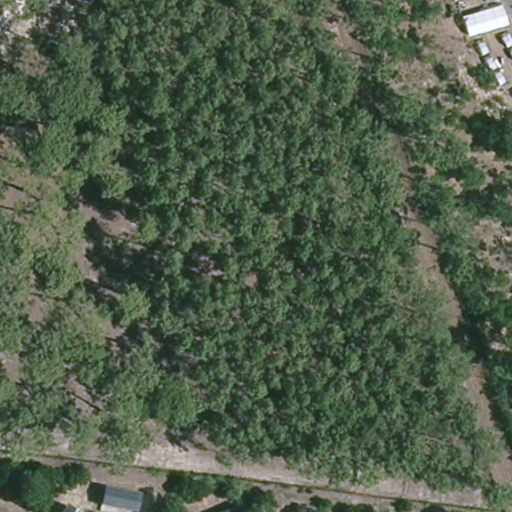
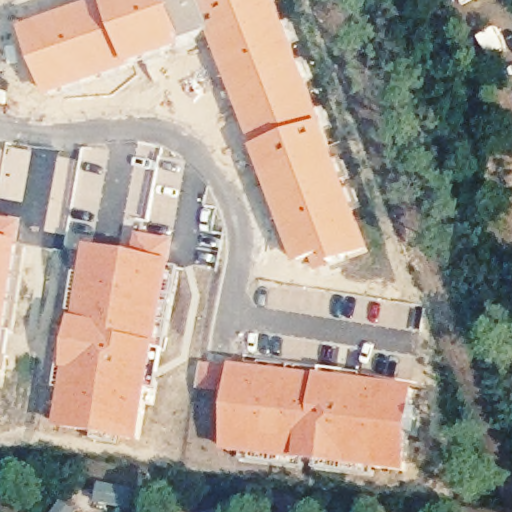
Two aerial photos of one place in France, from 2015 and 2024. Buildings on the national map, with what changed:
new [(279,0),(375,254),(318,275),(313,263),(302,268),(287,239),(209,37),(187,48),(187,50),(50,100),(22,29),(95,0),(279,0)]
new [(20,241),(17,268),(7,329),(3,348),(5,352),(0,373),(0,216),(22,220),(20,241)]
new [(137,231),(177,238),(174,262),(131,254),(137,231)]
new [(62,371),(87,246),(131,254),(174,262),(161,343),(138,445),(54,427),(62,371)]
new [(235,365),(317,372),(317,370),(418,385),(416,421),(405,475),(306,469),(224,455),(235,365)]
new [(140,492),(136,512),(128,512),(99,506),(103,485),(140,492)]
new [(66,504),(77,512),(60,512),(66,504)]

